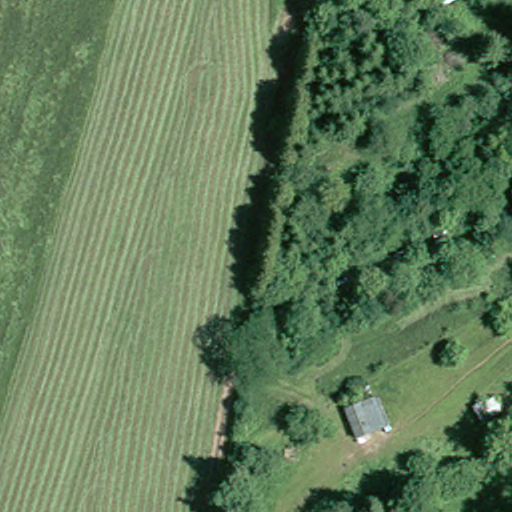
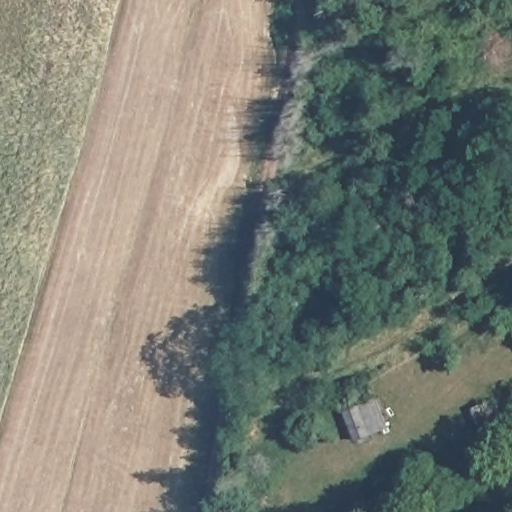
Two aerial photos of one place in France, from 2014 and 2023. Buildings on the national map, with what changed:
unchanged [(370,402),(380,436),(357,446),(345,412),(370,402)]

